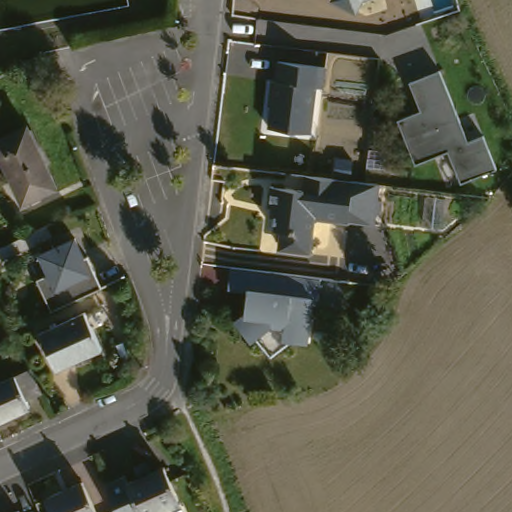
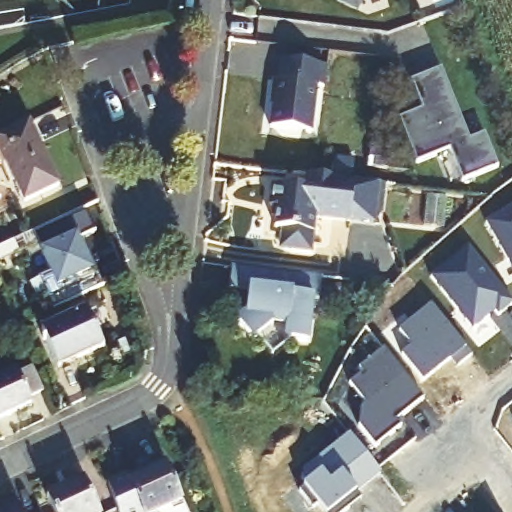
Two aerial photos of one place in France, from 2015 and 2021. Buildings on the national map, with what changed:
unchanged [(358,10),(337,0),(363,0),(358,10)]
unchanged [(325,70),(321,91),(315,90),(308,135),(268,130),(272,102),(270,101),(273,82),(275,82),(278,63),(325,70)]
unchanged [(442,71),(470,142),(485,136),(498,170),(461,185),(449,153),(416,165),(399,121),(422,111),(411,83),(442,71)]
unchanged [(19,203),(0,161),(0,135),(28,122),(56,186),(19,203)]
unchanged [(348,222),(314,218),(310,254),(283,250),(278,245),(280,230),(273,229),(276,207),(268,206),(270,185),(303,190),(305,175),(309,175),(353,180),(348,222)]
unchanged [(366,182),(379,184),(374,225),(348,222),(353,180),(366,182)]
unchanged [(52,236),(0,264),(0,248),(47,225),(52,236)]
unchanged [(37,255),(71,238),(81,258),(85,256),(91,270),(100,288),(50,312),(35,281),(47,275),(37,255)]
new [(467,250),(511,305),(496,317),(488,307),(481,313),(487,318),(470,331),(429,279),(467,250)]
unchanged [(254,338),(245,337),(234,323),(246,315),(246,310),(244,309),(246,292),(226,290),(229,268),(318,279),(316,301),(310,300),(304,345),(289,342),(284,336),(285,327),(270,325),(254,338)]
new [(430,306),(470,357),(455,368),(449,360),(420,383),(399,356),(410,348),(397,332),(430,306)]
unchanged [(100,348),(56,368),(40,331),(84,311),(100,348)]
new [(361,375),(358,371),(382,351),(422,401),(395,422),(399,429),(373,449),(357,428),(359,410),(364,407),(348,386),(361,375)]
unchanged [(41,392),(27,398),(30,406),(0,420),(0,382),(30,368),(41,392)]
new [(346,512),(319,512),(315,507),(311,511),(297,493),(305,487),(299,480),(303,477),(301,475),(333,450),(349,437),(355,445),(379,475),(354,495),(360,501),(347,511),(346,512)]
unchanged [(159,512),(117,512),(106,483),(124,475),(127,482),(136,477),(135,473),(137,462),(147,467),(150,472),(163,465),(180,502),(159,512)]
unchanged [(94,512),(52,512),(45,496),(81,481),(94,512)]

